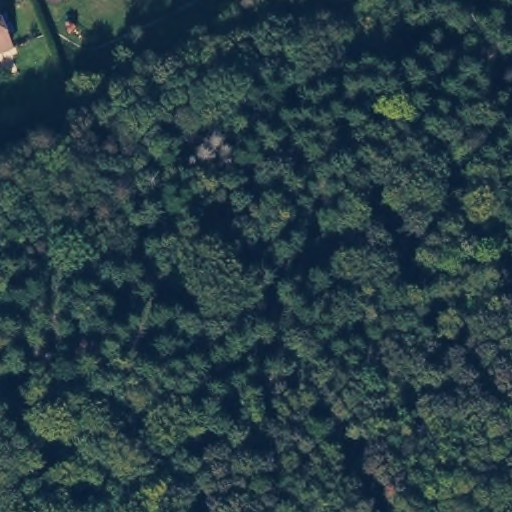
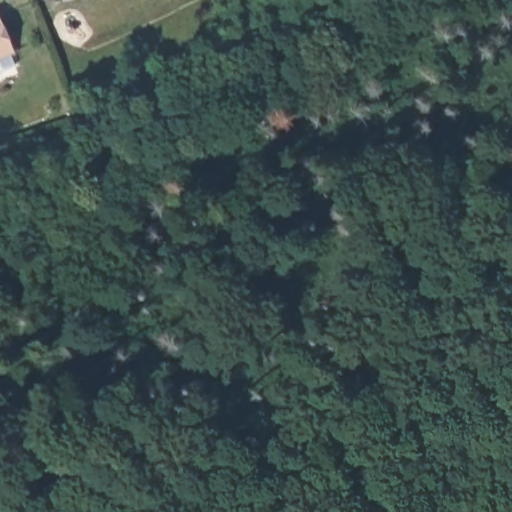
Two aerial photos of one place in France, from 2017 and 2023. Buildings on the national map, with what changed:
unchanged [(0,54),(0,27),(10,50),(0,54)]

